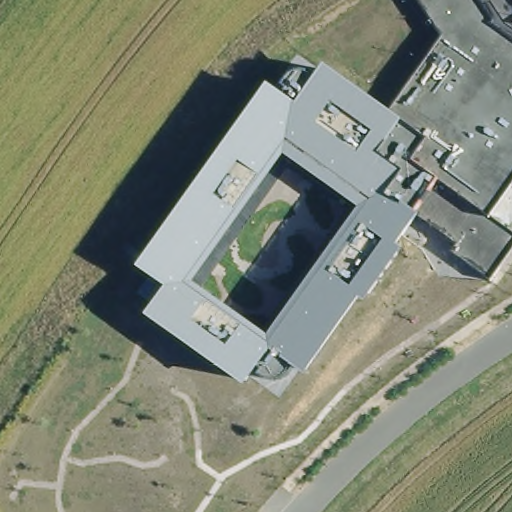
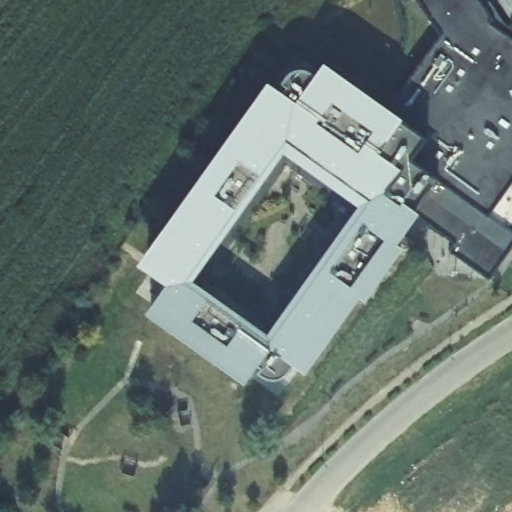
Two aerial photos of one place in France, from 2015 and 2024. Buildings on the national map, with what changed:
unchanged [(443,36),(420,0),(482,0),(485,4),(491,1),(505,22),(512,27),(512,225),(508,228),(512,231),(512,248),(490,279),(450,251),(456,243),(421,215),(400,244),(405,249),(368,300),(362,297),(310,373),(295,366),(289,373),(281,377),(267,377),(258,371),(247,385),(146,315),(167,286),(138,266),(269,80),(280,88),(284,82),(292,71),(308,69),(320,72),(326,63),(390,107),(443,36)]

